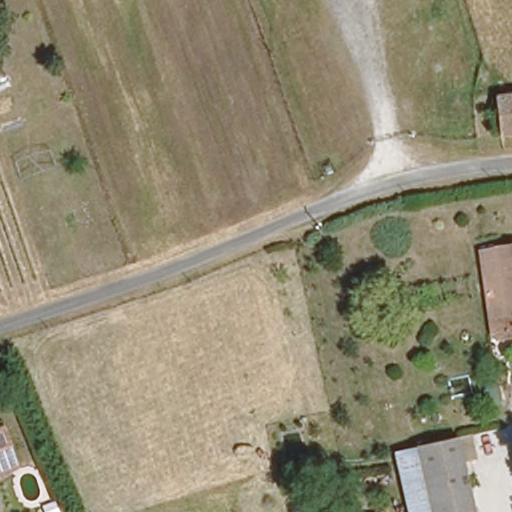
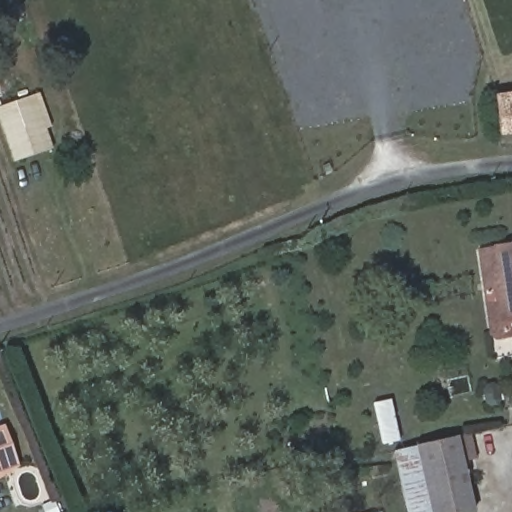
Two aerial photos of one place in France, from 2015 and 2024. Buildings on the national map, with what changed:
unchanged [(489,97),(512,93),(512,131),(497,133),(489,97)]
new [(0,125),(0,107),(39,94),(51,128),(47,130),(54,149),(13,162),(0,125)]
unchanged [(512,344),(508,344),(506,326),(497,254),(512,251),(512,344)]
unchanged [(506,326),(491,331),(482,257),(497,254),(506,326)]
unchanged [(412,447),(457,441),(462,464),(467,512),(427,512),(412,447)]
unchanged [(398,450),(412,447),(427,512),(407,512),(398,450)]
unchanged [(0,472),(0,459),(2,465),(4,471),(0,472)]

